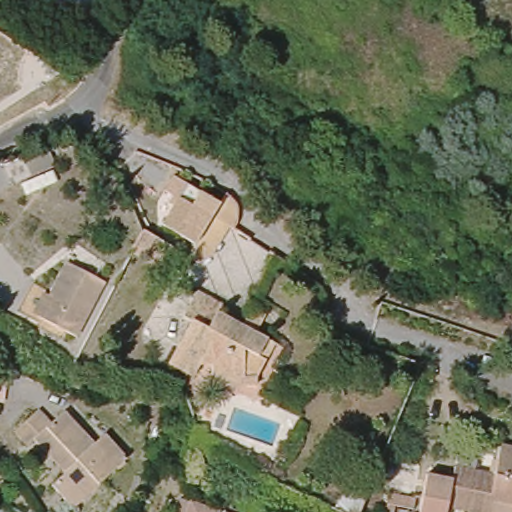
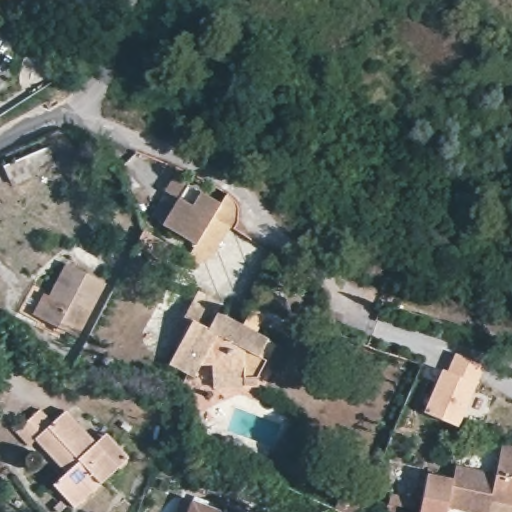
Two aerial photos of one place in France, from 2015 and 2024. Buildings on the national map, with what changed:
unchanged [(13,5),(7,0),(17,0),(13,5)]
unchanged [(16,175),(8,156),(51,137),(60,156),(16,175)]
unchanged [(193,257),(186,252),(194,239),(163,221),(178,195),(165,187),(174,171),(219,199),(225,187),(233,194),(237,199),(238,204),(237,216),(236,219),(234,222),(227,218),(208,249),(193,257)]
unchanged [(174,244),(165,259),(136,242),(145,226),(174,244)]
unchanged [(39,293),(45,297),(62,263),(70,267),(73,261),(101,275),(97,282),(71,337),(34,318),(27,315),(39,293)]
unchanged [(212,377),(211,366),(200,367),(193,378),(169,365),(191,322),(183,318),(197,292),(222,305),(218,312),(242,325),(251,307),(266,316),(257,333),(267,339),(275,343),(266,361),(256,379),(256,386),(244,386),(213,388),(212,377)]
new [(440,368),(445,371),(453,352),(482,366),(457,426),(422,412),(440,368)]
unchanged [(48,489),(61,478),(31,444),(23,451),(10,437),(34,415),(47,428),(61,416),(90,448),(101,438),(123,463),(112,472),(69,512),(48,489)]
unchanged [(452,485),(455,471),(495,479),(501,449),(512,451),(512,512),(447,512),(420,512),(427,479),(452,485)]
unchanged [(221,512),(175,512),(181,497),(221,512)]
unchanged [(404,512),(397,511),(397,512),(387,512),(390,498),(411,502),(409,512),(404,512)]
unchanged [(242,512),(241,512),(223,512),(225,506),(242,512)]

